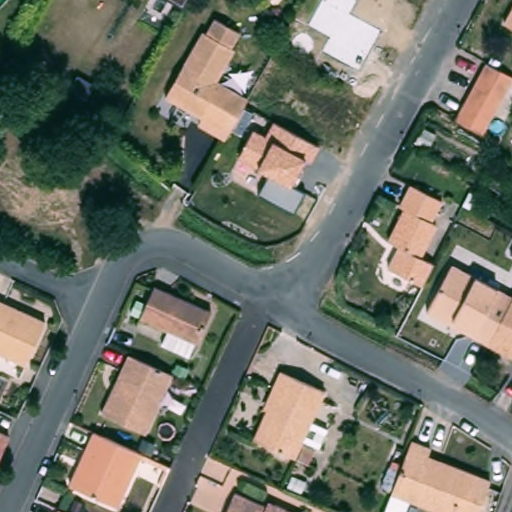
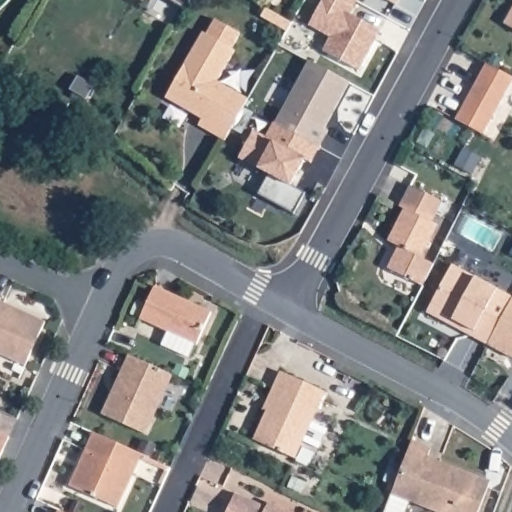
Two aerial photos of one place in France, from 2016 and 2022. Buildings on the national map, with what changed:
unchanged [(173,0),(188,0),(184,6),(173,0)]
new [(326,0),(349,0),(358,5),(351,19),(382,35),(360,75),(324,55),(332,41),(310,29),(326,0)]
new [(397,10),(380,0),(402,0),(397,10)]
unchanged [(241,32),(231,49),(206,34),(217,17),(241,32)]
unchanged [(512,18),(512,28),(508,25),(512,18)]
unchanged [(212,125),(169,100),(206,34),(236,51),(218,84),(252,102),(229,142),(209,131),(212,125)]
new [(328,130),(318,146),(274,122),(309,60),(350,82),(325,127),(328,130)]
unchanged [(511,77),(480,133),(453,119),(484,62),(511,77)]
unchanged [(253,130),(266,137),(274,122),(318,146),(310,164),(305,160),(293,185),(305,192),(294,211),(259,193),(269,174),(258,167),(239,159),(253,130)]
unchanged [(445,201),(435,220),(441,224),(423,255),(400,244),(391,239),(409,206),(403,204),(413,185),(445,201)]
unchanged [(423,255),(432,265),(421,285),(386,266),(400,244),(423,255)]
unchanged [(512,359),(425,313),(452,265),(512,292),(512,359)]
unchanged [(214,312),(200,345),(199,343),(192,357),(165,345),(171,331),(143,319),(157,287),(214,312)]
unchanged [(46,320),(26,364),(0,352),(0,299),(46,320)]
unchanged [(175,375),(148,435),(105,416),(132,355),(175,375)]
unchanged [(188,377),(174,371),(178,362),(192,368),(188,377)]
unchanged [(327,392),(314,422),(330,430),(322,449),(305,442),(297,460),(258,441),(280,392),(276,390),(283,372),(327,392)]
unchanged [(12,440),(0,466),(0,434),(12,440)]
unchanged [(144,455),(121,506),(74,486),(97,434),(144,455)]
unchanged [(158,447),(154,457),(140,450),(144,441),(158,447)]
unchanged [(433,452),(428,464),(443,470),(445,465),(495,484),(484,512),(437,512),(394,496),(414,445),(433,452)]
unchanged [(269,510),(274,512),(229,512),(239,490),(271,505),(269,510)]
unchanged [(299,512),(276,512),(280,503),(299,512)]
unchanged [(65,512),(63,512),(63,511),(65,512)]

